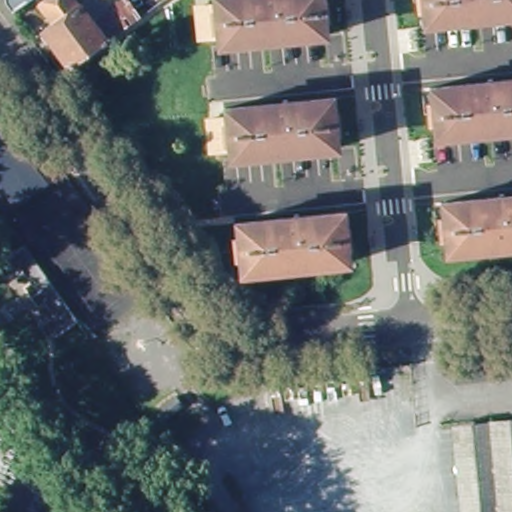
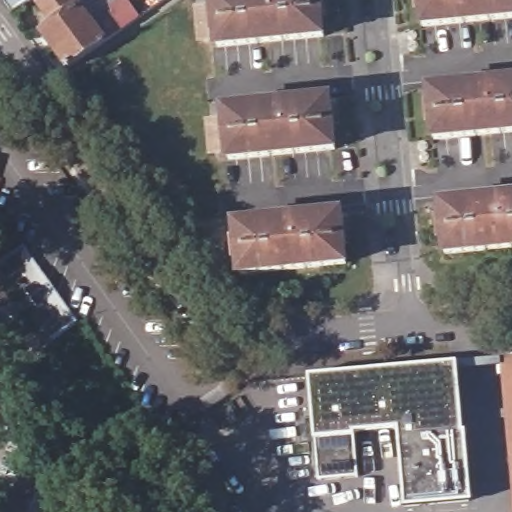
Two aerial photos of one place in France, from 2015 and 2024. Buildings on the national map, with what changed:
unchanged [(10,6),(9,0),(37,0),(16,15),(10,6)]
unchanged [(57,26),(44,5),(51,0),(79,0),(84,7),(93,0),(128,0),(132,6),(142,20),(128,30),(72,69),(47,34),(57,26)]
unchanged [(224,8),(223,0),(329,0),(333,37),(227,48),(226,40),(210,41),(206,10),(224,8)]
unchanged [(421,0),(512,0),(512,20),(423,29),(421,0)]
unchanged [(434,87),(512,80),(512,131),(440,137),(434,87)]
unchanged [(216,128),(235,125),(234,113),(338,102),(344,153),(239,163),(238,154),(220,156),(216,128)]
demolished [(2,117),(51,186),(20,209),(3,184),(0,187),(0,119),(2,117)]
unchanged [(512,246),(445,252),(440,202),(512,195),(512,246)]
unchanged [(340,213),(345,263),(240,272),(235,223),(340,213)]
new [(512,356),(512,505),(499,356),(512,356)]
new [(405,508),(397,430),(355,434),(357,477),(319,480),(315,440),(308,377),(458,362),(464,432),(466,431),(472,502),(405,508)]

